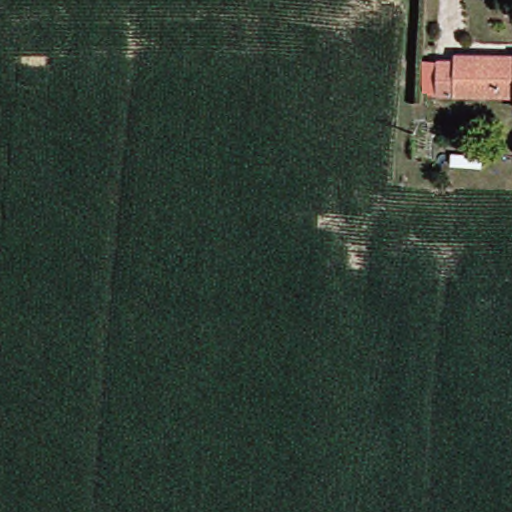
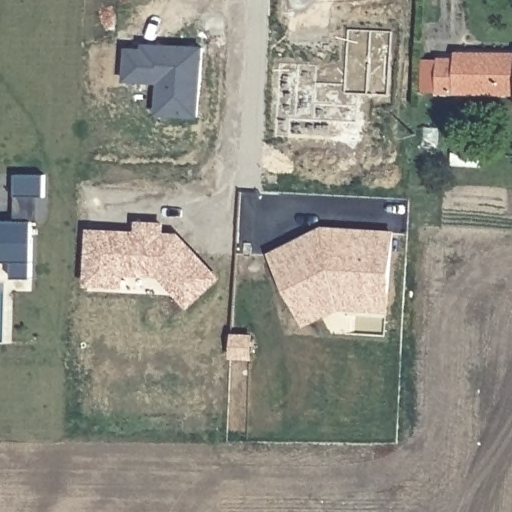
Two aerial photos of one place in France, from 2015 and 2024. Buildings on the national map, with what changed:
new [(387,95),(360,92),(358,139),(277,136),(278,63),(319,66),(317,81),(346,84),(348,30),(392,31),(387,95)]
new [(202,117),(159,115),(161,84),(127,81),(127,47),(143,49),(144,43),(206,46),(202,117)]
unchanged [(437,92),(437,58),(453,59),(453,53),(487,54),(512,54),(512,94),(437,92)]
new [(14,277),(14,261),(0,262),(0,223),(17,222),(17,177),(42,177),(42,197),(33,198),(32,277),(14,277)]
new [(190,310),(161,276),(127,276),(127,287),(86,286),(89,227),(137,230),(137,220),(168,222),(167,232),(182,232),(223,278),(190,310)]
new [(392,312),(343,308),(306,327),(271,252),(322,225),(397,232),(392,312)]

